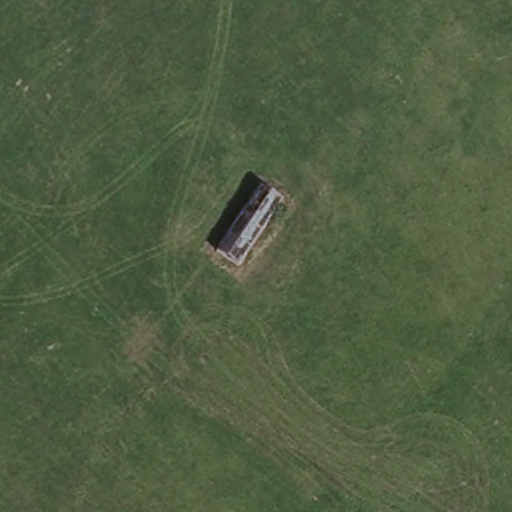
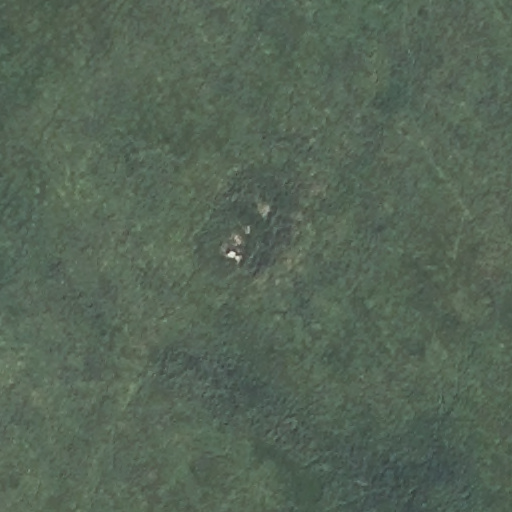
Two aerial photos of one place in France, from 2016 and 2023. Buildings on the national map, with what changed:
unchanged [(258,188),(282,206),(234,270),(212,252),(258,188)]

